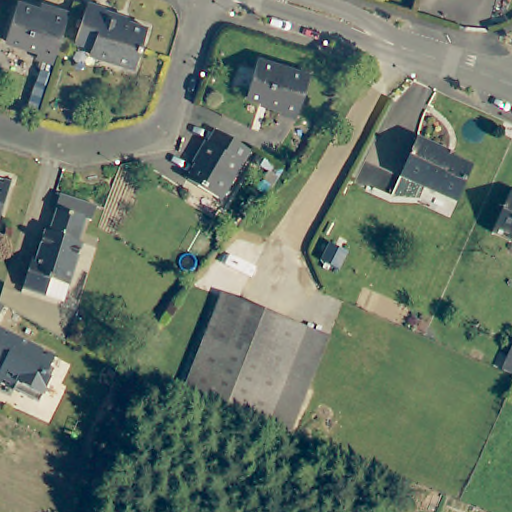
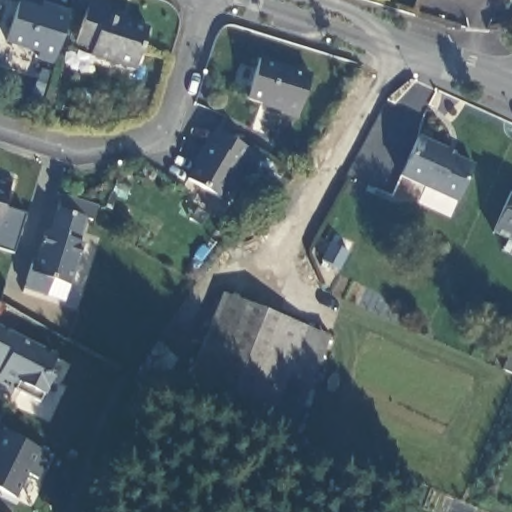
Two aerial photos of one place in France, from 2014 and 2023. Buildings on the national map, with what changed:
unchanged [(41,46),(9,35),(22,0),(54,10),(56,2),(71,6),(54,59),(39,52),(41,46)]
unchanged [(114,10),(151,24),(136,63),(96,48),(97,45),(82,37),(96,0),(102,0),(116,5),(114,10)]
unchanged [(302,75),(290,116),(275,112),(276,106),(246,96),(257,61),(302,75)]
unchanged [(185,180),(200,160),(195,157),(204,141),(208,144),(218,130),(252,150),(220,200),(185,180)]
unchanged [(442,151),(441,154),(467,167),(452,199),(397,175),(416,137),(442,151)]
unchanged [(0,203),(0,177),(9,180),(0,203)]
unchanged [(505,242),(491,236),(508,194),(512,195),(512,245),(505,242)]
unchanged [(91,217),(84,232),(80,230),(72,255),(75,255),(61,297),(45,291),(39,307),(15,298),(22,275),(25,278),(36,244),(39,245),(52,204),(91,217)]
unchanged [(186,390),(222,294),(328,334),(292,430),(186,390)]
unchanged [(42,380),(47,382),(34,406),(0,388),(0,332),(52,361),(42,380)]
new [(25,475),(14,497),(0,491),(0,430),(52,455),(39,480),(25,475)]

